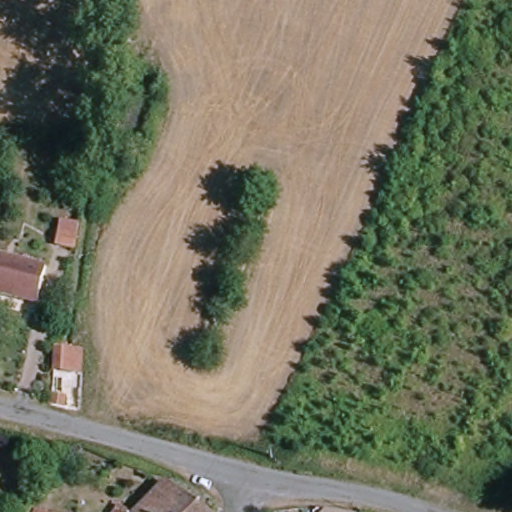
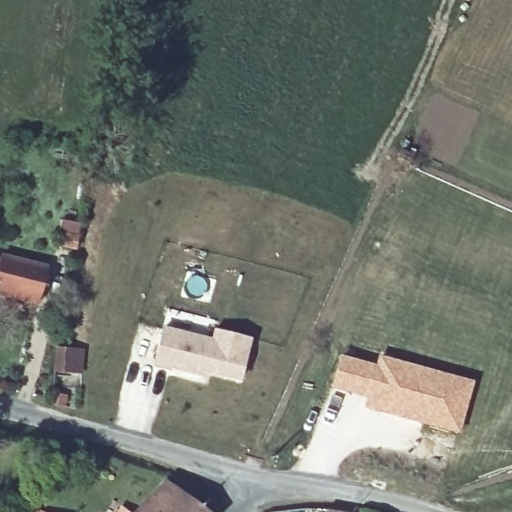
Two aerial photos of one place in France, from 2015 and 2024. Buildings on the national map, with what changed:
unchanged [(49,264),(38,302),(0,290),(0,253),(1,249),(49,264)]
new [(197,375),(170,367),(169,370),(152,366),(161,328),(210,341),(213,330),(248,338),(239,378),(207,372),(206,377),(197,375)]
new [(55,348),(80,350),(79,371),(55,370),(55,348)]
new [(340,354),(375,363),(378,353),(474,381),(460,433),(362,407),(365,398),(330,387),(340,354)]
unchanged [(143,512),(167,486),(202,512),(143,512)]
unchanged [(47,512),(35,512),(37,507),(47,512)]

